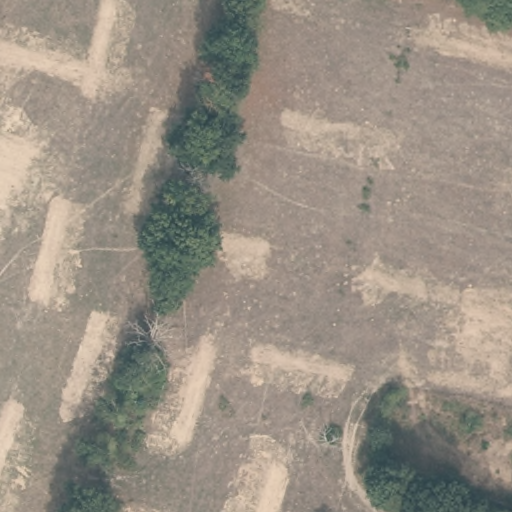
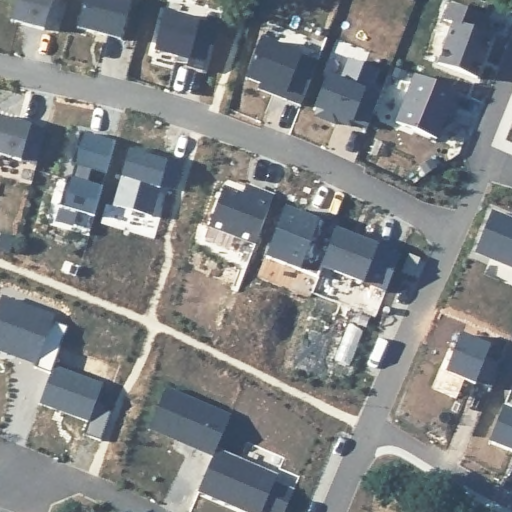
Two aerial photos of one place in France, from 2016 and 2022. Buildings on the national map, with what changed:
new [(54,0),(46,30),(13,21),(19,0),(54,0)]
new [(129,0),(131,1),(121,39),(78,28),(85,0),(129,0)]
new [(454,25),(444,21),(450,5),(484,18),(479,33),(493,38),(477,80),(438,65),(454,25)]
new [(165,13),(219,26),(208,71),(187,65),(189,60),(155,51),(165,13)]
new [(318,62),(300,106),(268,95),(270,91),(248,82),(264,40),(318,62)]
new [(337,122),(336,125),(315,117),(318,110),(316,109),(328,77),(341,82),(350,60),(379,71),(370,93),(380,96),(368,128),(352,122),(352,123),(350,127),(337,122)]
new [(416,75),(456,91),(437,139),(397,123),(416,75)]
new [(47,130),(36,165),(0,154),(0,116),(47,130)]
new [(68,177),(71,178),(75,166),(71,165),(80,132),(116,142),(106,175),(91,170),(88,183),(103,187),(94,217),(59,207),(68,177)]
new [(131,148),(183,160),(175,192),(162,189),(153,219),(115,207),(131,148)]
new [(243,195),(246,186),(258,190),(274,196),(255,245),(209,227),(224,188),(243,195)]
new [(267,261),(285,210),(319,220),(320,217),(338,223),(336,230),(322,268),(325,269),(319,280),(267,261)]
new [(512,217),(512,269),(476,256),(494,210),(512,217)]
new [(336,230),(401,255),(386,292),(322,268),(336,230)]
new [(0,349),(0,301),(1,297),(54,316),(52,321),(68,327),(51,373),(34,368),(36,363),(18,356),(7,352),(0,349)]
new [(460,334),(490,345),(474,382),(445,372),(460,334)]
new [(51,373),(54,365),(102,382),(93,407),(111,413),(100,441),(84,434),(89,422),(41,406),(51,373)]
new [(230,416),(217,451),(214,460),(149,429),(166,389),(230,416)]
new [(512,411),(512,452),(490,443),(504,408),(512,411)]
unchanged [(196,494),(214,460),(217,451),(277,476),(273,485),(290,493),(283,512),(273,512),(262,508),(261,512),(242,512),(196,494)]

